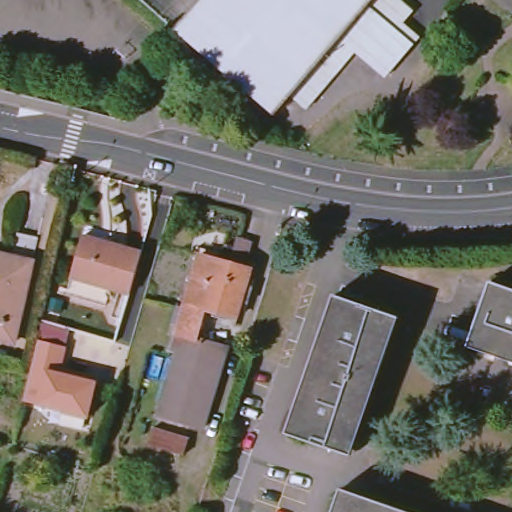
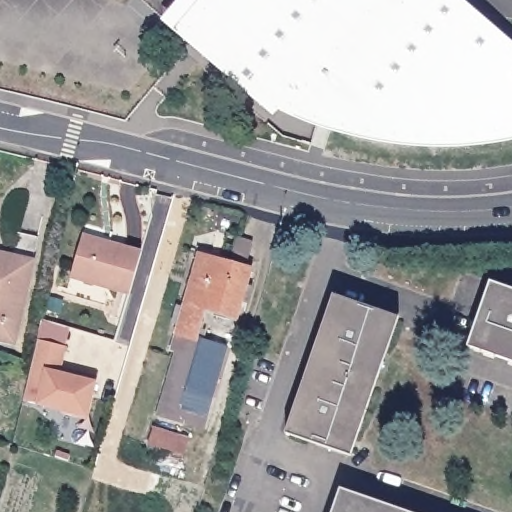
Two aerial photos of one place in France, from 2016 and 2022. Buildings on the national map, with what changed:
new [(512,145),(487,152),(423,157),(355,145),(325,139),(275,120),(268,125),(156,27),(179,0),(455,0),(512,49),(512,145)]
demolished [(215,5),(219,0),(391,0),(403,10),(407,6),(419,16),(408,29),(425,43),(395,79),(365,54),(315,110),(300,98),(282,118),(187,37),(215,5)]
demolished [(219,0),(215,5),(208,0),(219,0)]
unchanged [(128,291),(72,274),(83,234),(140,250),(128,291)]
unchanged [(1,338),(0,338),(0,255),(10,257),(32,262),(18,318),(13,341),(1,338)]
unchanged [(157,412),(160,401),(163,402),(177,352),(171,350),(172,350),(178,325),(172,323),(178,305),(185,306),(200,255),(242,265),(243,260),(252,262),(233,325),(218,320),(220,312),(206,308),(200,327),(204,329),(202,339),(225,345),(200,425),(157,412)]
unchanged [(490,282),(512,290),(512,356),(470,341),(490,282)]
unchanged [(286,432),(333,295),(393,317),(345,453),(286,432)]
unchanged [(65,340),(58,366),(97,375),(88,409),(23,393),(37,333),(65,340)]
unchanged [(183,453),(148,442),(153,426),(188,436),(183,453)]
unchanged [(342,489),(406,512),(333,512),(342,489)]

